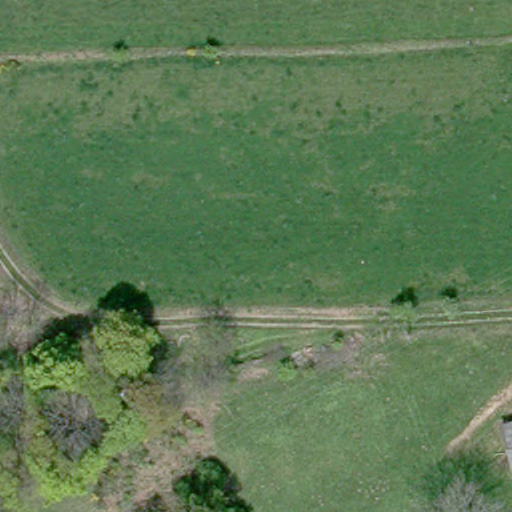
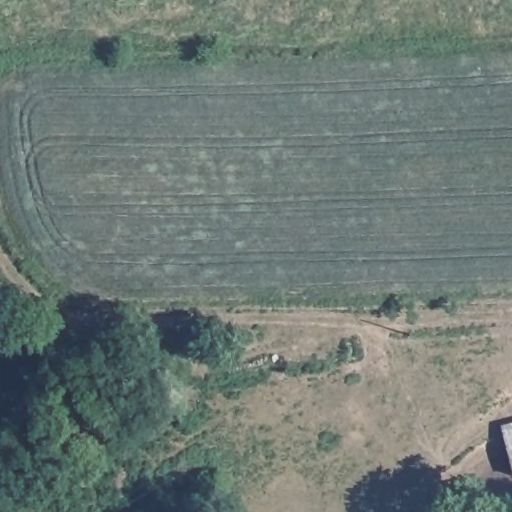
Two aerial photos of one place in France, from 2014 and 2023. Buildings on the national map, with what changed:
unchanged [(512,428),(512,459),(505,430),(512,428)]

